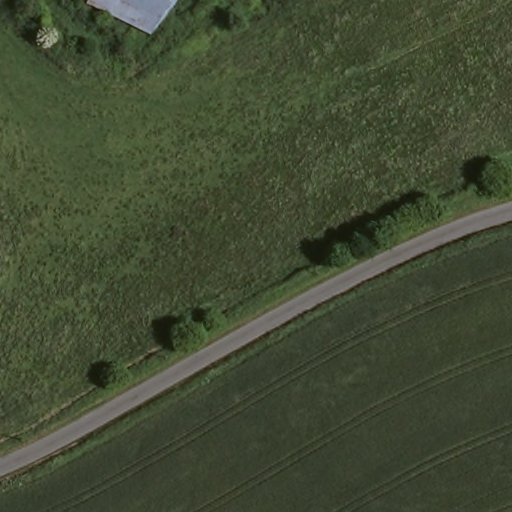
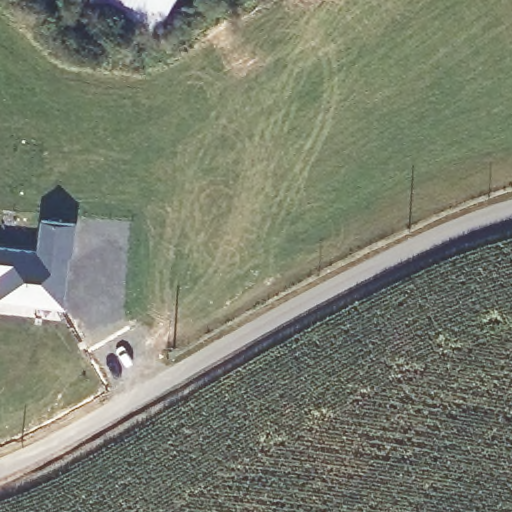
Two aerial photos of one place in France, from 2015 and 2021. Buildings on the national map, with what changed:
unchanged [(175,4),(161,28),(104,0),(168,0),(175,4)]
new [(41,220),(78,224),(74,255),(71,254),(65,307),(0,300),(0,246),(38,249),(41,220)]

